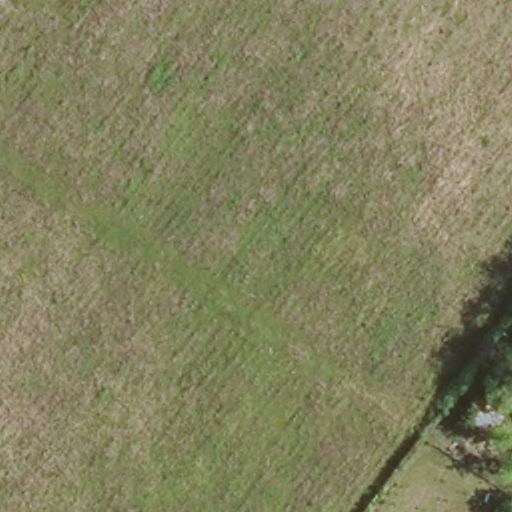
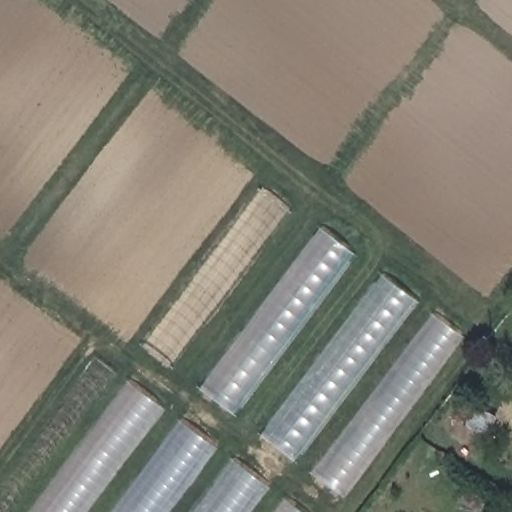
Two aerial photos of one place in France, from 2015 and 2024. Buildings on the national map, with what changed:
new [(145,341),(257,183),(293,212),(175,364),(145,341)]
new [(329,224),(360,253),(235,415),(204,390),(329,224)]
new [(385,275),(422,301),(295,461),(265,436),(385,275)]
new [(316,474),(436,312),(470,337),(350,499),(316,474)]
new [(115,373),(12,512),(0,512),(0,491),(100,354),(115,373)]
new [(302,512),(33,512),(130,385),(302,512)]
unchanged [(495,412),(481,436),(465,423),(480,401),(495,412)]

